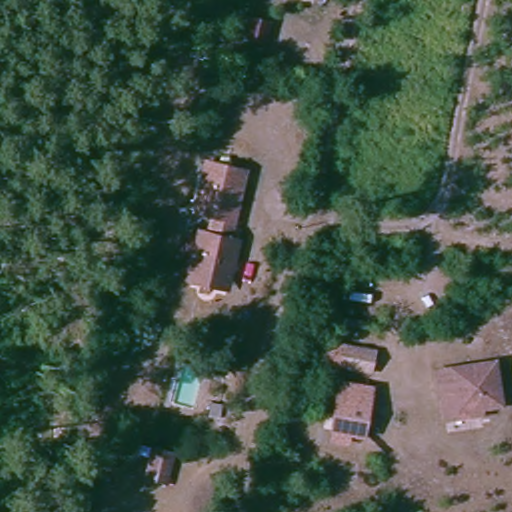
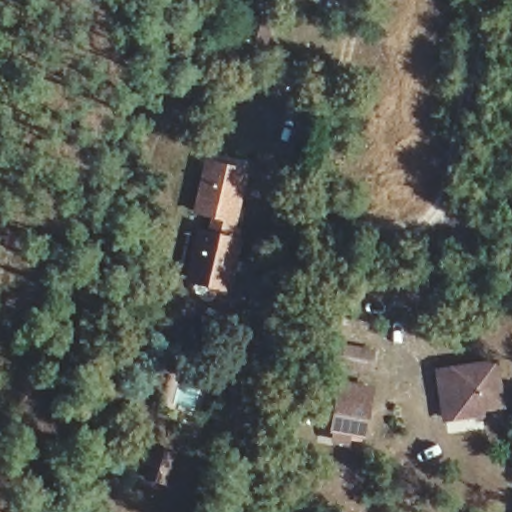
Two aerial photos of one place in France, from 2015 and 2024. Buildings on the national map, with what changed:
unchanged [(241,40),(246,21),(265,25),(260,45),(241,40)]
unchanged [(207,243),(212,223),(194,219),(205,175),(196,173),(200,159),(246,169),(242,184),(226,247),(207,243)]
unchanged [(212,300),(185,295),(188,284),(200,241),(207,243),(226,247),(237,250),(233,269),(227,294),(225,304),(212,300)]
unchanged [(367,374),(360,372),(337,364),(343,345),(366,354),(374,357),(367,374)]
unchanged [(439,414),(441,381),(442,363),(500,366),(499,407),(480,405),(479,417),(439,414)]
unchanged [(328,427),(340,396),(345,381),(373,391),(368,406),(357,437),(328,427)]
unchanged [(151,449),(175,454),(166,483),(146,479),(151,449)]

